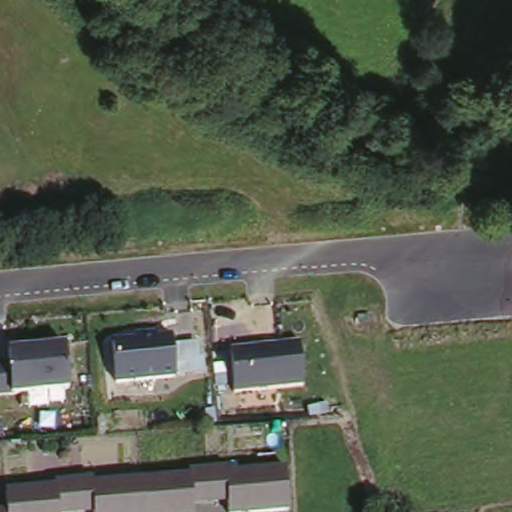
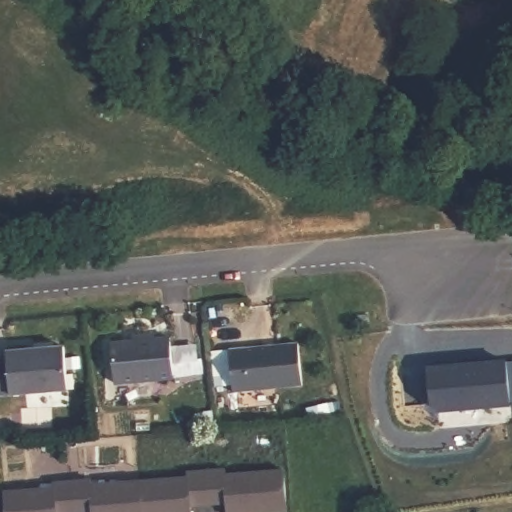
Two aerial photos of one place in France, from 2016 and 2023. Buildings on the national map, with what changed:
unchanged [(135,341),(133,335),(156,332),(157,340),(170,338),(174,379),(116,386),(110,342),(135,341)]
unchanged [(297,344),(302,387),(234,394),(229,350),(297,344)]
unchanged [(7,353),(63,347),(67,390),(11,395),(0,396),(0,363),(7,363),(7,353)]
new [(504,363),(508,406),(437,413),(428,406),(425,371),(504,363)]
unchanged [(32,491),(55,489),(54,483),(90,480),(91,485),(141,480),(190,476),(190,471),(225,468),(225,473),(284,468),(288,508),(241,512),(229,512),(228,500),(211,502),(192,503),(193,512),(38,512),(32,491)]
unchanged [(6,492),(32,491),(38,512),(7,512),(6,492)]

